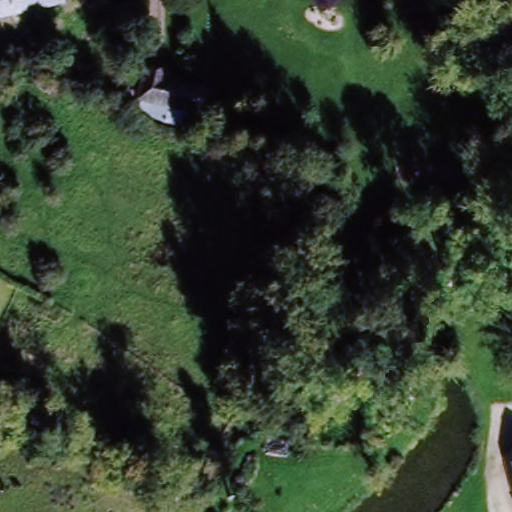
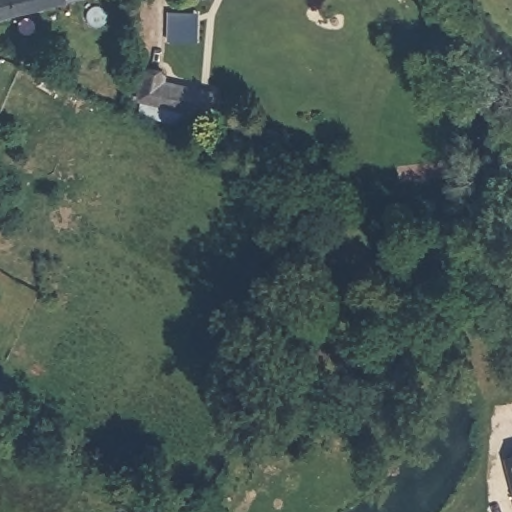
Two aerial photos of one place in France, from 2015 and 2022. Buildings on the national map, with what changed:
unchanged [(0,25),(0,0),(51,0),(54,14),(0,25)]
unchanged [(167,85),(213,107),(204,125),(157,104),(167,85)]

